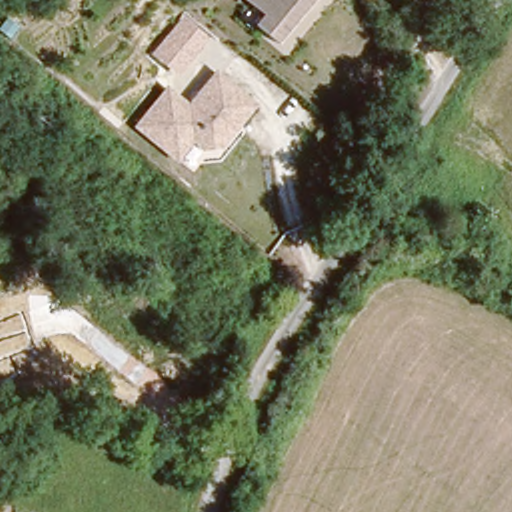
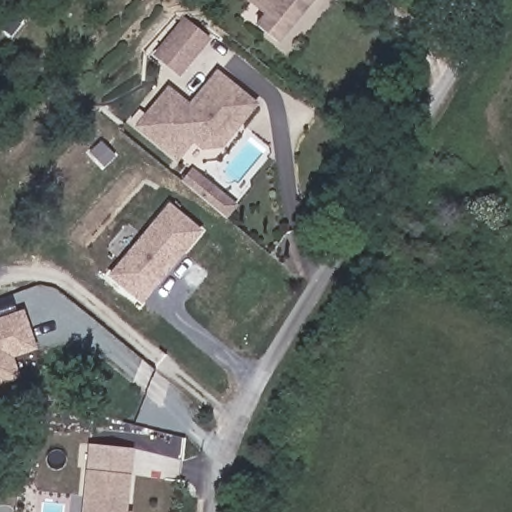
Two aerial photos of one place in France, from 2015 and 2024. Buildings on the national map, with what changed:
unchanged [(253,23),(261,12),(248,0),(311,0),(276,41),(253,23)]
unchanged [(184,15),(209,37),(179,74),(152,53),(184,15)]
unchanged [(204,150),(195,142),(178,162),(140,131),(169,94),(194,114),(209,95),(206,91),(217,76),(245,99),(254,106),(235,131),(223,147),(204,150)]
new [(225,217),(181,181),(192,167),(236,205),(225,217)]
new [(168,202),(199,228),(140,301),(106,275),(168,202)]
new [(13,356),(19,377),(0,383),(0,317),(24,309),(37,350),(13,356)]
new [(86,468),(130,473),(126,510),(131,510),(131,512),(81,512),(86,468)]

